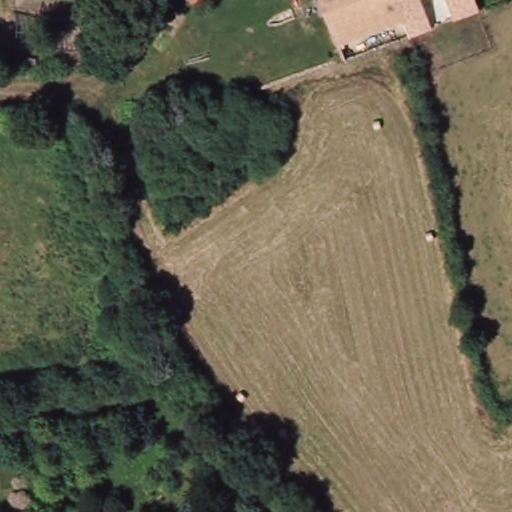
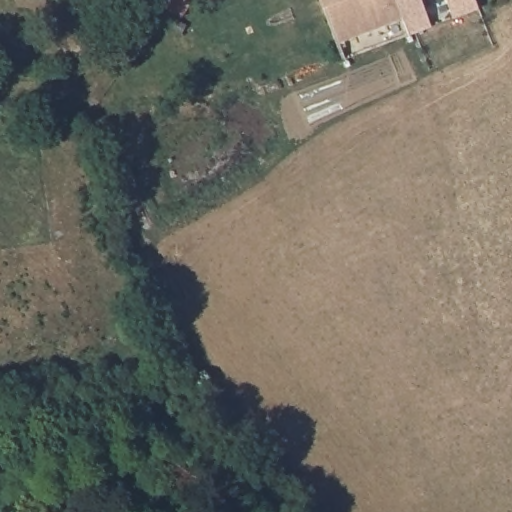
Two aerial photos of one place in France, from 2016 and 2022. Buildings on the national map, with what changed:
unchanged [(186,0),(195,0),(187,3),(186,0)]
unchanged [(399,24),(328,45),(314,0),(391,0),(392,2),(399,24)]
unchanged [(427,33),(427,34),(405,41),(404,41),(404,40),(399,24),(392,2),(391,0),(422,0),(417,1),(427,33)]
unchanged [(477,19),(451,27),(450,25),(442,0),(472,0),(477,16),(477,19)]

